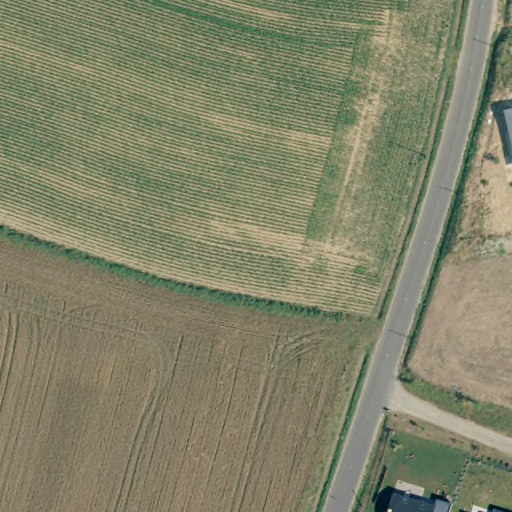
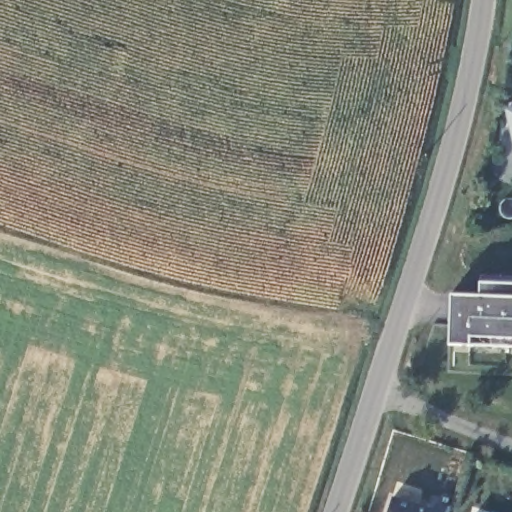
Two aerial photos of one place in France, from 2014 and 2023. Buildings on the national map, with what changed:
unchanged [(512,107),(512,148),(504,109),(512,107)]
new [(480,296),(479,283),(512,285),(512,347),(466,344),(449,343),(452,296),(480,296)]
unchanged [(433,509),(435,502),(452,508),(451,512),(388,512),(393,497),(433,509)]

